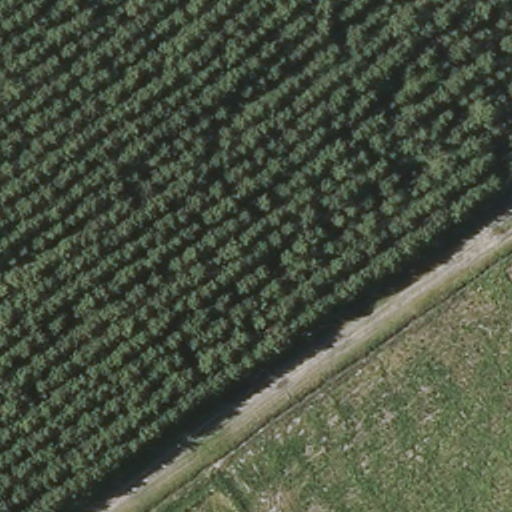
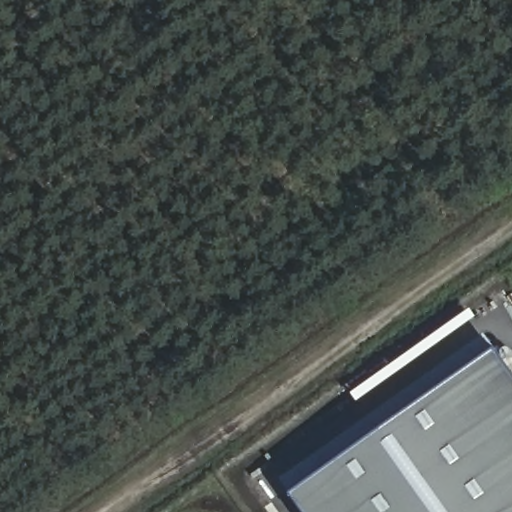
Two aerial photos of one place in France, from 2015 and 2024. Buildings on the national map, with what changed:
new [(512,372),(512,512),(303,512),(291,494),(496,349),(512,372)]

